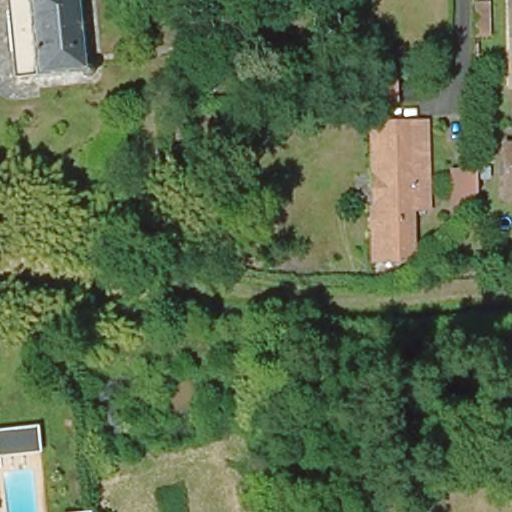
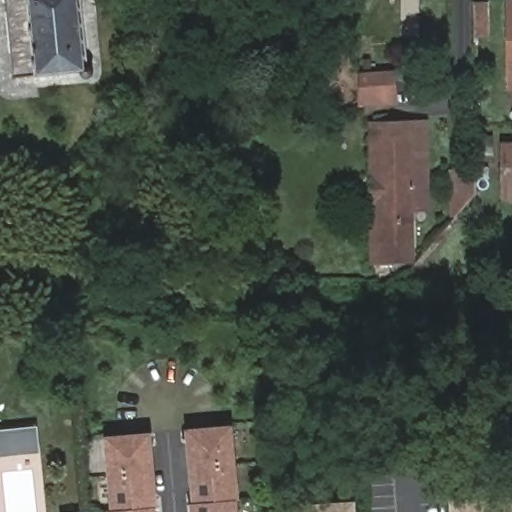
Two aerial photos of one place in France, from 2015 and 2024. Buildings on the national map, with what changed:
unchanged [(5,0),(79,0),(85,64),(87,64),(90,65),(91,66),(92,68),(91,71),(91,74),(89,75),(87,76),(84,77),(81,75),(80,73),(11,80),(5,0)]
unchanged [(510,1),(512,0),(512,86),(510,1)]
new [(359,73),(395,71),(396,105),(359,107),(359,73)]
unchanged [(378,129),(381,236),(371,236),(369,120),(410,120),(410,129),(378,129)]
unchanged [(413,255),(371,257),(371,236),(381,236),(378,129),(410,129),(413,255)]
unchanged [(504,200),(504,190),(502,147),(512,147),(512,199),(504,200)]
unchanged [(450,227),(430,249),(426,219),(443,199),(456,202),(468,207),(450,227)]
new [(234,425),(239,500),(192,504),(185,429),(234,425)]
unchanged [(0,459),(0,435),(39,432),(40,455),(0,459)]
new [(105,435),(151,432),(157,507),(111,511),(105,435)]
new [(512,496),(512,512),(451,512),(450,501),(512,496)]
new [(240,512),(193,512),(192,504),(239,500),(240,512)]
new [(356,501),(357,512),(292,512),(292,505),(356,501)]
new [(111,511),(157,507),(157,512),(110,512),(110,511),(111,511)]

